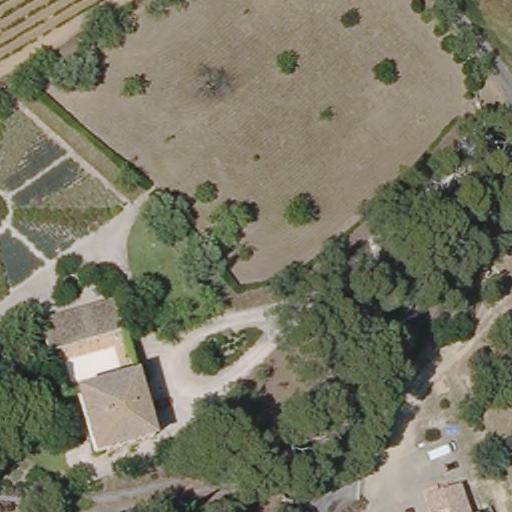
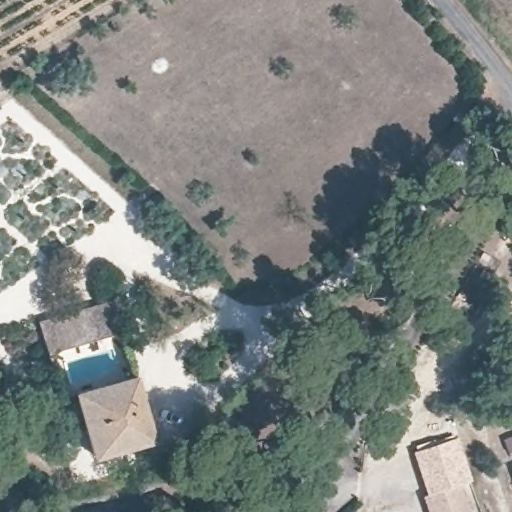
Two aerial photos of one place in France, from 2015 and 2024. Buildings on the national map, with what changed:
unchanged [(489,87),(479,95),(471,85),(480,77),(489,87)]
unchanged [(154,434),(94,448),(81,383),(63,387),(52,342),(130,324),(154,434)]
new [(458,436),(473,480),(459,484),(427,496),(413,451),(458,436)]
unchanged [(448,509),(441,512),(431,512),(425,497),(459,484),(470,512),(449,512),(448,509)]

